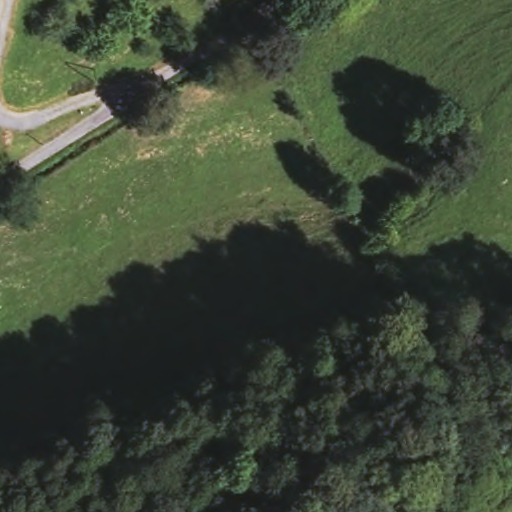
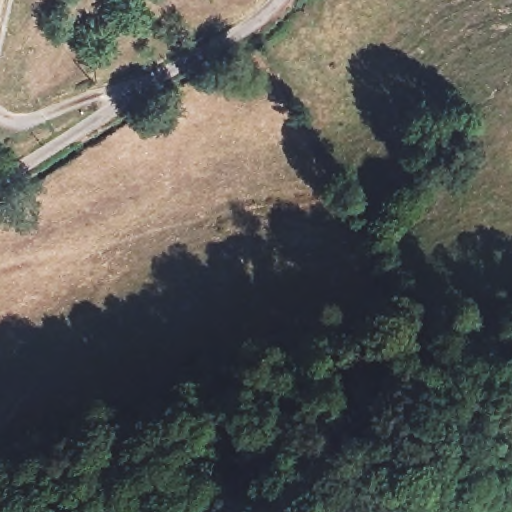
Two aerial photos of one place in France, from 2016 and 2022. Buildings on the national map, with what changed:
[]

